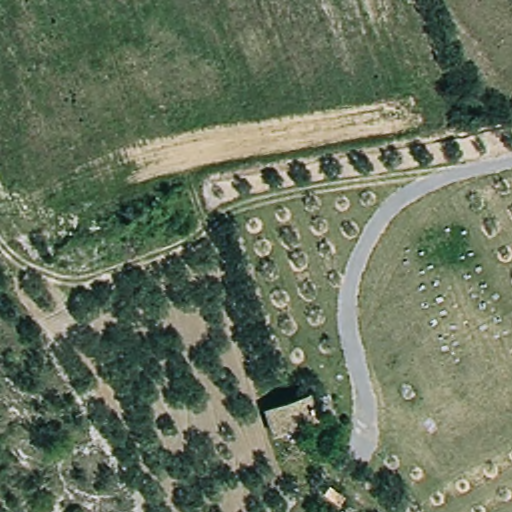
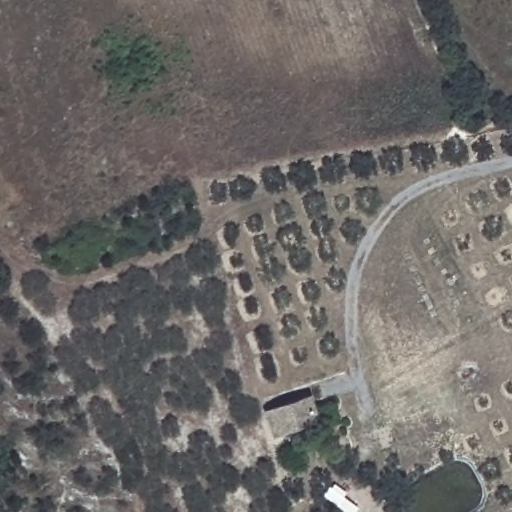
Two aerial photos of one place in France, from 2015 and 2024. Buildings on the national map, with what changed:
unchanged [(307,401),(315,424),(274,439),(266,416),(307,401)]

